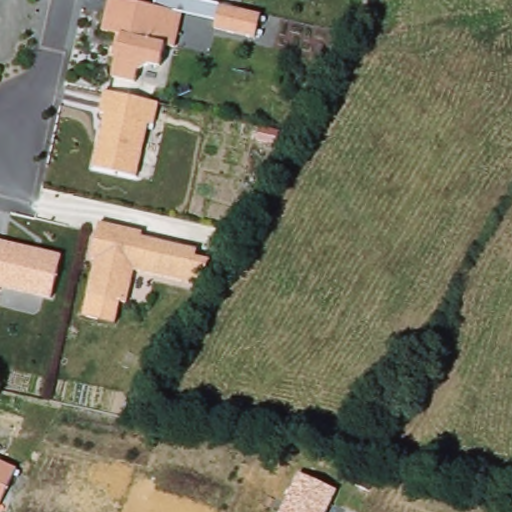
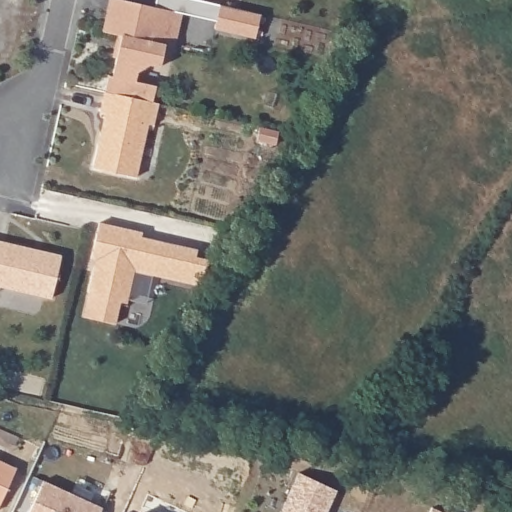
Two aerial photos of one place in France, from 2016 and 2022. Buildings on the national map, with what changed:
unchanged [(122,29),(108,26),(114,0),(153,0),(187,8),(180,42),(170,40),(166,62),(155,59),(143,66),(140,77),(117,72),(122,52),(117,52),(122,29)]
unchanged [(116,114),(110,112),(115,91),(154,100),(158,101),(153,122),(147,121),(135,174),(104,167),(116,114)]
unchanged [(96,259),(92,258),(100,223),(144,232),(144,237),(200,249),(198,256),(211,260),(203,286),(134,270),(127,302),(89,293),(96,259)]
unchanged [(54,295),(0,284),(0,238),(64,252),(54,295)]
unchanged [(0,504),(0,460),(16,467),(0,504)]
unchanged [(328,512),(281,512),(300,473),(337,491),(328,512)]
new [(102,507),(100,512),(29,512),(44,481),(102,507)]

